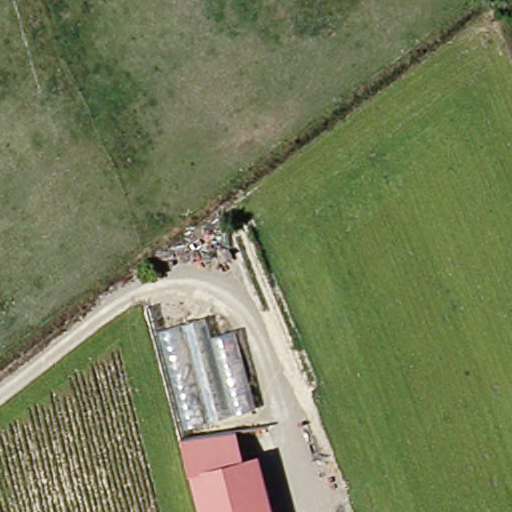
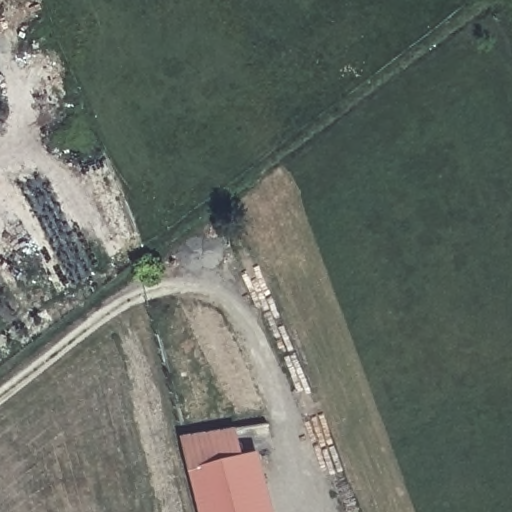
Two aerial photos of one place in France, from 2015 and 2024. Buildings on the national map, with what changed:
demolished [(160,331),(205,318),(211,336),(237,330),(259,407),(187,425),(160,331)]
unchanged [(257,512),(243,459),(220,463),(212,430),(255,424),(279,512),(257,512)]
unchanged [(212,430),(220,463),(243,459),(257,512),(208,512),(188,435),(212,430)]

